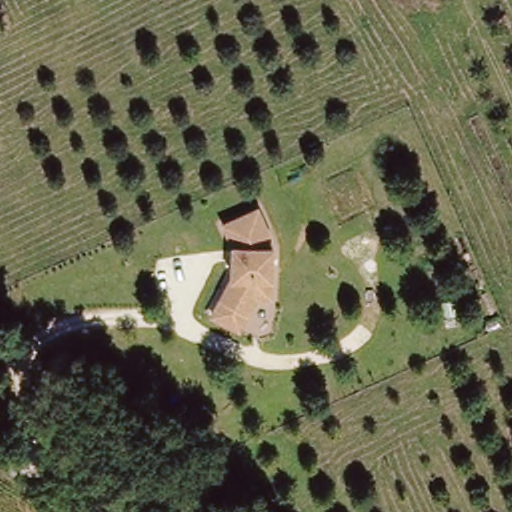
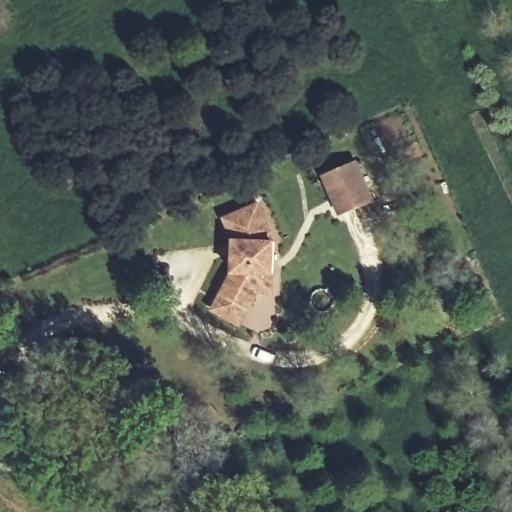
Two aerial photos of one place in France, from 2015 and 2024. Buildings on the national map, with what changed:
new [(375,201),(338,216),(322,176),(358,160),(375,201)]
unchanged [(215,302),(224,287),(237,264),(238,234),(229,211),(263,197),(275,225),(275,234),(278,234),(275,285),(261,284),(251,302),(242,317),(215,302)]

